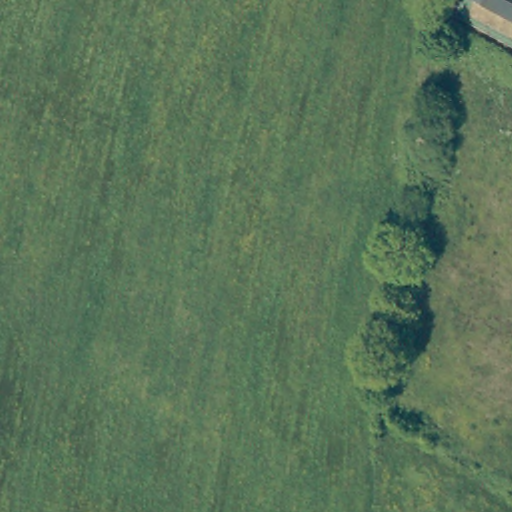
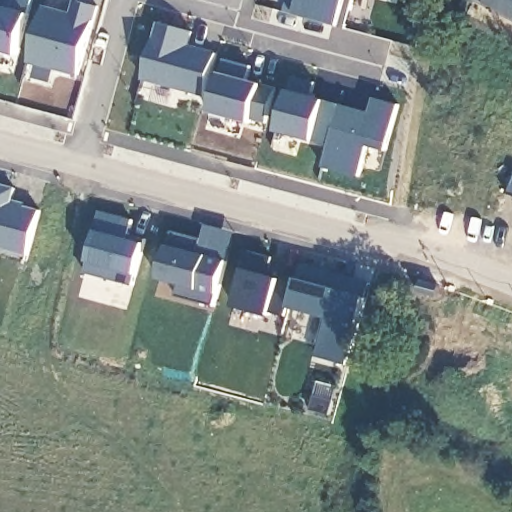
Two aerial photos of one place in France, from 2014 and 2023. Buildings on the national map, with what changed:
new [(7,0),(31,0),(16,55),(0,51),(0,7),(5,9),(7,0)]
new [(283,13),(287,0),(352,0),(344,29),(283,13)]
new [(483,0),(482,5),(474,0),(483,0)]
unchanged [(482,5),(483,0),(512,0),(512,21),(482,5)]
new [(41,7),(70,15),(75,1),(96,7),(77,75),(27,61),(41,7)]
new [(142,80),(159,24),(193,32),(190,45),(218,52),(205,96),(142,80)]
new [(265,122),(250,119),(250,122),(209,111),(223,59),(250,65),(246,80),(275,88),(265,122)]
new [(331,144),(315,139),(315,141),(278,132),(290,90),(293,77),(315,82),(311,95),(341,105),(370,112),(373,99),(398,105),(386,150),(368,146),(361,176),(324,166),(331,144)]
new [(512,174),(512,197),(505,195),(512,174)]
new [(10,204),(39,211),(27,255),(0,248),(0,185),(14,189),(10,204)]
new [(97,234),(95,233),(100,213),(134,222),(130,236),(147,240),(135,287),(86,275),(97,234)]
new [(175,297),(178,285),(158,279),(171,231),(201,239),(205,225),(234,232),(226,261),(214,307),(175,297)]
new [(242,270),(241,270),(246,251),(270,257),(266,272),(295,280),(288,307),(285,316),(270,312),(269,315),(233,305),(242,270)]
new [(295,280),(299,265),(368,284),(346,366),(313,357),(325,316),(288,307),(295,280)]
new [(420,281),(438,287),(435,298),(416,292),(420,281)]

